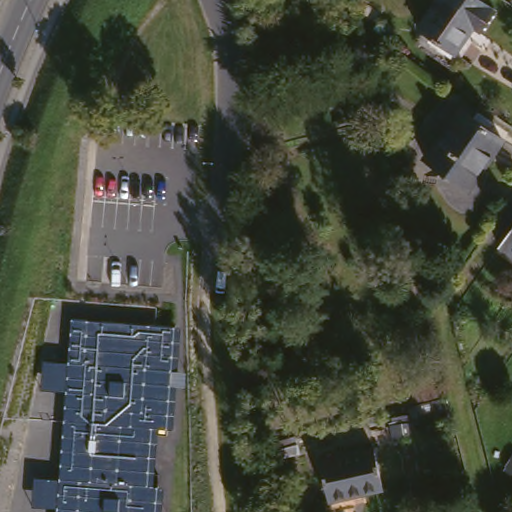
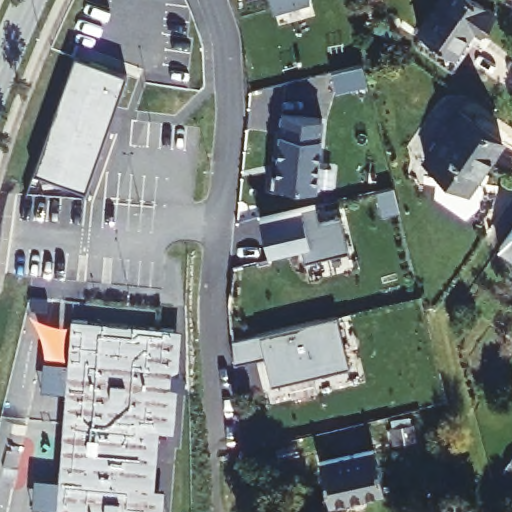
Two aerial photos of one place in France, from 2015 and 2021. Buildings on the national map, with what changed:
new [(269,0),(298,0),(272,8),(269,0)]
unchanged [(474,35),(468,30),(451,55),(413,30),(433,0),(472,0),(489,12),(474,35)]
new [(127,75),(116,107),(108,131),(85,193),(33,174),(74,56),(127,75)]
unchanged [(471,115),(476,108),(493,121),(489,128),(501,138),(480,167),(477,165),(455,196),(417,168),(459,106),(471,115)]
new [(277,156),(281,113),(321,117),(314,188),(296,185),(296,190),(269,188),(270,171),(272,155),(277,156)]
new [(314,204),(318,221),(340,216),(348,249),(304,260),(300,245),(268,253),(259,217),(314,204)]
unchanged [(496,247),(512,224),(512,257),(496,247)]
new [(271,384),(264,356),(234,363),(232,338),(337,313),(350,364),(311,374),(273,383),(271,384)]
unchanged [(182,328),(178,368),(188,369),(185,390),(176,388),(172,431),(159,431),(155,485),(165,486),(163,512),(53,512),(54,510),(29,509),(31,480),(56,480),(64,393),(38,392),(41,361),(67,363),(70,318),(182,328)]
unchanged [(410,416),(416,431),(394,439),(394,440),(390,430),(388,424),(410,416)]
unchanged [(325,499),(319,455),(350,449),(374,445),(381,490),(362,493),(325,499)]

